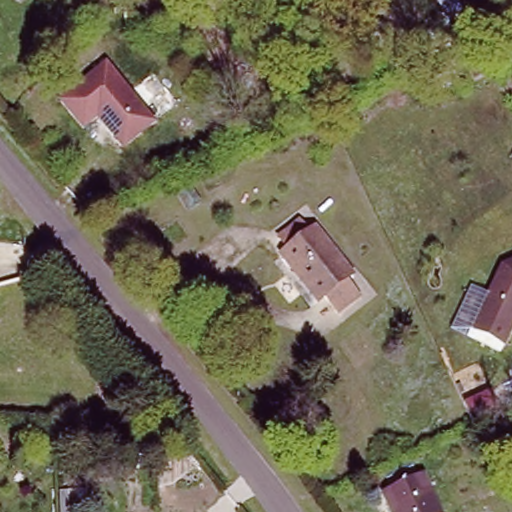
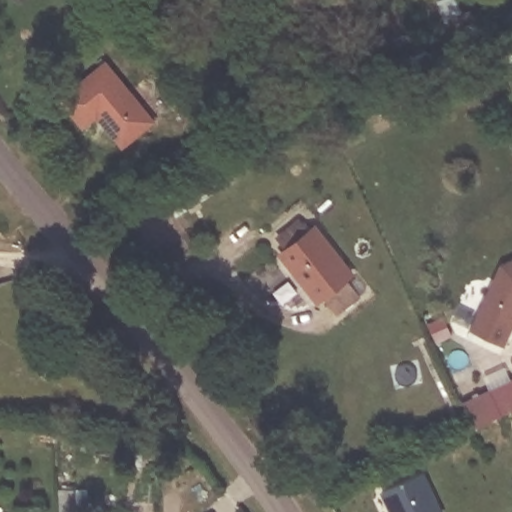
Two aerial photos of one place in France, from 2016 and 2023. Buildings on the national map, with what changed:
unchanged [(512,42),(512,62),(504,45),(512,42)]
unchanged [(156,122),(122,150),(95,119),(81,131),(56,100),(104,61),(156,122)]
unchanged [(351,278),(346,282),(359,300),(336,317),(324,300),(318,305),(281,257),(286,252),(278,240),(299,224),(308,235),(314,231),(351,278)]
unchanged [(501,348),(468,333),(502,262),(512,257),(512,325),(501,348)]
new [(473,427),(462,403),(512,380),(512,410),(473,427)]
unchanged [(440,512),(392,512),(382,489),(422,470),(440,512)]
unchanged [(66,512),(64,490),(81,490),(83,512),(66,512)]

